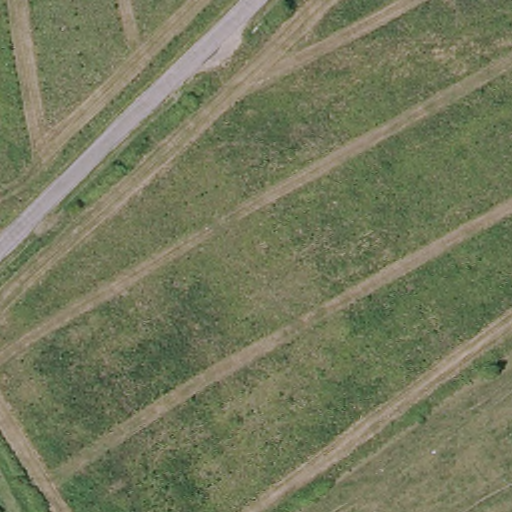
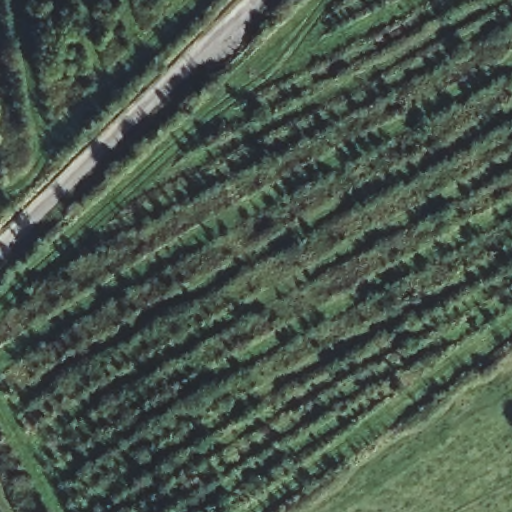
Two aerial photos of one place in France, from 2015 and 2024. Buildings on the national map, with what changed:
[]

